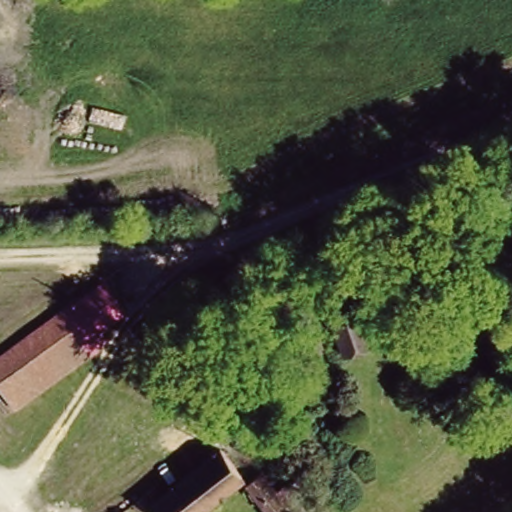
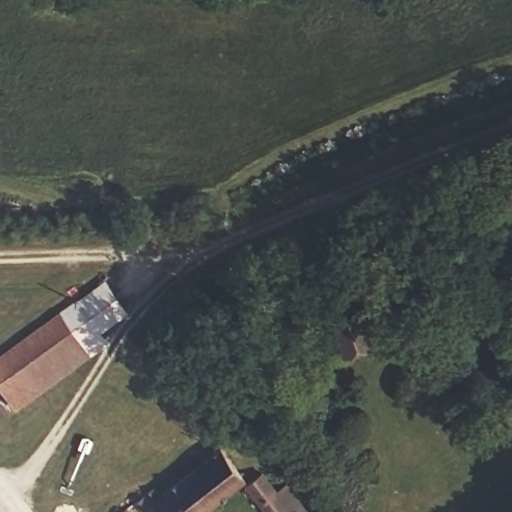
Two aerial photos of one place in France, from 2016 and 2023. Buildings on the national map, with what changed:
unchanged [(98,334),(107,345),(13,414),(0,394),(0,354),(103,281),(128,311),(98,334)]
unchanged [(331,320),(358,307),(372,334),(345,348),(331,320)]
unchanged [(150,498),(156,493),(165,502),(223,459),(242,483),(202,512),(163,512),(150,498)]
unchanged [(248,491),(277,471),(298,498),(290,504),(296,512),(265,512),(248,491)]

